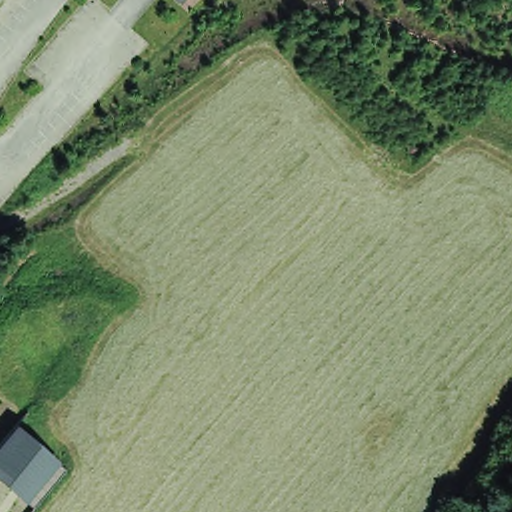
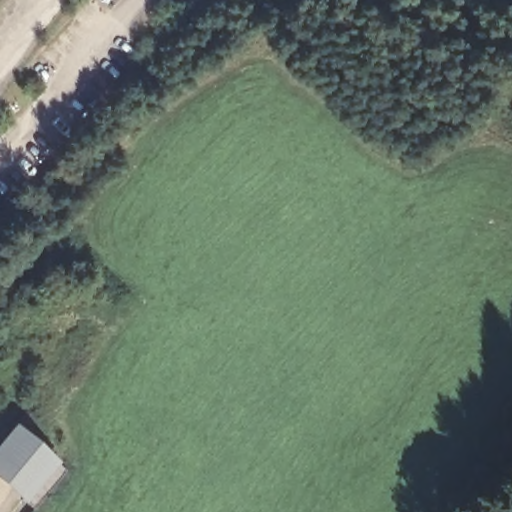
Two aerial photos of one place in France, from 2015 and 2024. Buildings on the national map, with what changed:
unchanged [(27,500),(0,480),(0,437),(13,421),(61,460),(27,500)]

